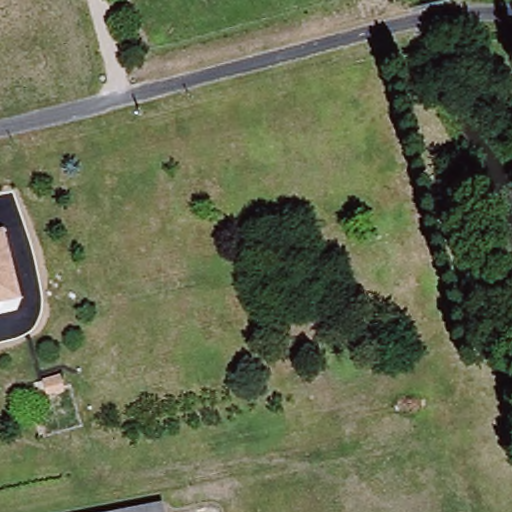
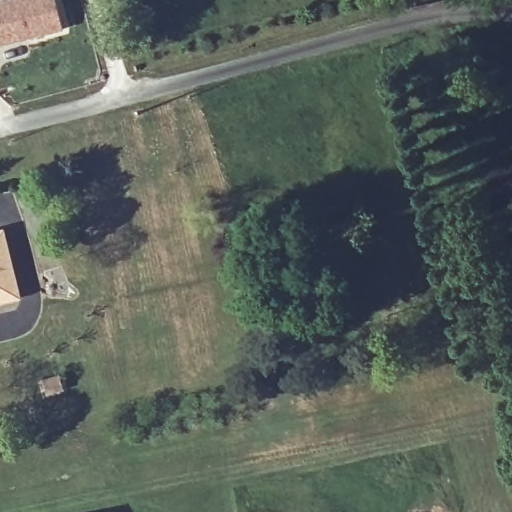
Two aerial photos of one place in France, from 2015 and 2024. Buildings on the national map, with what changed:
new [(0,0),(58,0),(64,25),(1,41),(0,35),(0,0)]
unchanged [(0,302),(0,230),(0,229),(13,284),(16,298),(0,302)]

